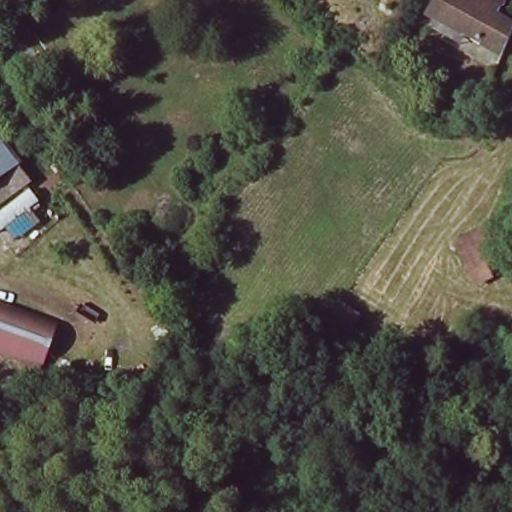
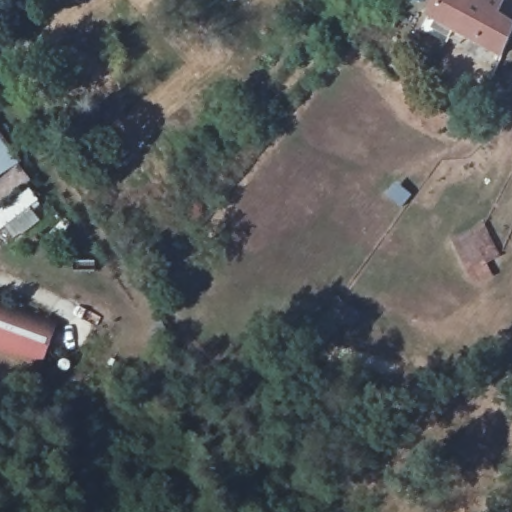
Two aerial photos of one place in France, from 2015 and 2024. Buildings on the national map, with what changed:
unchanged [(425,16),(434,0),(501,0),(497,7),(492,19),(510,30),(497,59),(425,16)]
unchanged [(0,173),(0,141),(15,163),(0,173)]
unchanged [(483,227),(498,256),(485,263),(490,274),(477,282),(456,242),(483,227)]
unchanged [(39,369),(0,353),(0,304),(56,327),(39,369)]

